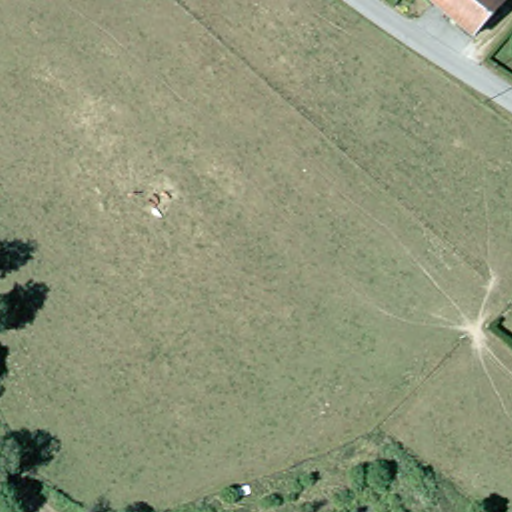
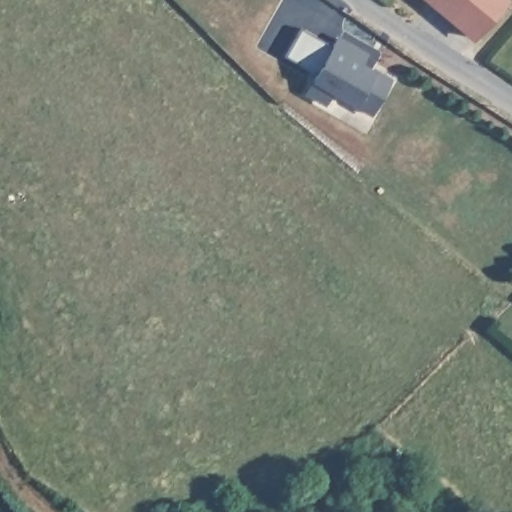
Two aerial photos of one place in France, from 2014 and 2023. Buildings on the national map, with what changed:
unchanged [(429,0),(498,0),(500,1),(470,36),(429,0)]
new [(364,62),(378,70),(394,78),(371,116),(354,107),(333,95),(326,105),(303,93),(311,80),(316,73),(286,55),(302,27),(334,44),(338,36),(368,53),(364,62)]

